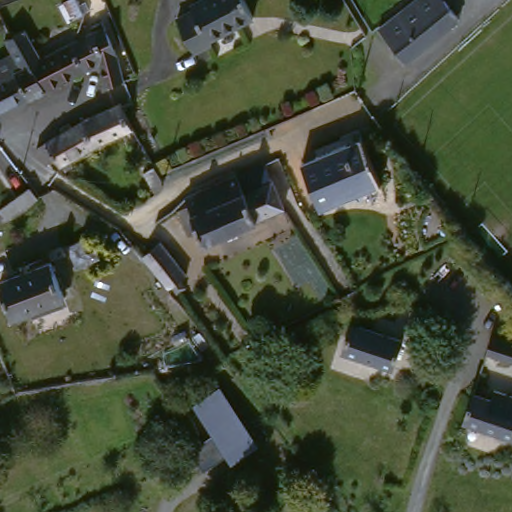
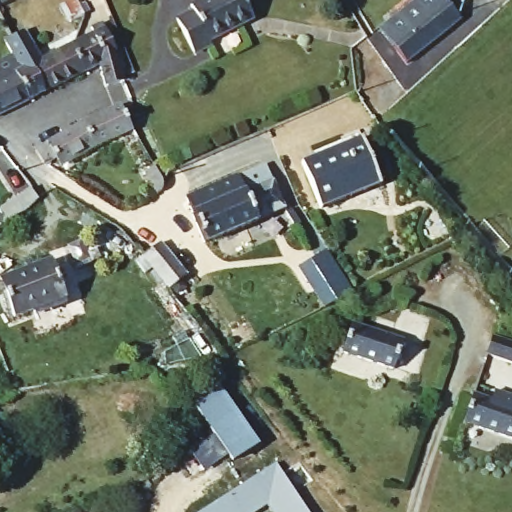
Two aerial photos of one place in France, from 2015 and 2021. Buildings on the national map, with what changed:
unchanged [(0,8),(0,0),(20,0),(0,8)]
unchanged [(67,19),(60,3),(66,0),(74,0),(80,12),(77,14),(67,19)]
unchanged [(198,6),(195,1),(198,0),(249,0),(255,11),(213,35),(216,39),(198,49),(179,17),(198,6)]
unchanged [(413,0),(445,0),(462,18),(414,60),(383,27),(413,0)]
unchanged [(25,68),(10,36),(16,34),(31,28),(47,59),(75,46),(89,73),(48,91),(28,100),(0,113),(0,80),(15,73),(25,68)]
unchanged [(111,88),(101,68),(89,73),(75,46),(95,37),(93,34),(102,29),(128,84),(111,88)]
unchanged [(113,104),(120,102),(134,130),(98,141),(83,112),(113,104)]
unchanged [(33,133),(83,112),(98,141),(57,158),(53,149),(43,154),(33,133)]
unchanged [(301,162),(360,136),(381,181),(322,207),(301,162)]
unchanged [(285,211),(209,244),(204,235),(193,240),(181,213),(193,208),(189,200),(266,167),(285,211)]
unchanged [(33,197),(0,219),(0,203),(26,185),(33,197)]
unchanged [(158,241),(184,273),(180,276),(186,284),(180,289),(173,281),(168,285),(143,251),(158,241)]
unchanged [(48,261),(60,297),(15,313),(3,277),(48,261)]
unchanged [(501,321),(512,325),(512,344),(495,338),(501,321)]
unchanged [(344,349),(353,322),(403,340),(393,366),(344,349)]
unchanged [(471,390),(494,398),(498,388),(512,393),(512,435),(462,418),(471,390)]
unchanged [(197,406),(222,389),(260,445),(235,462),(231,455),(214,467),(206,472),(193,452),(200,447),(218,435),(197,406)]
new [(253,512),(200,512),(276,461),(308,512),(272,512),(266,503),(253,512)]

